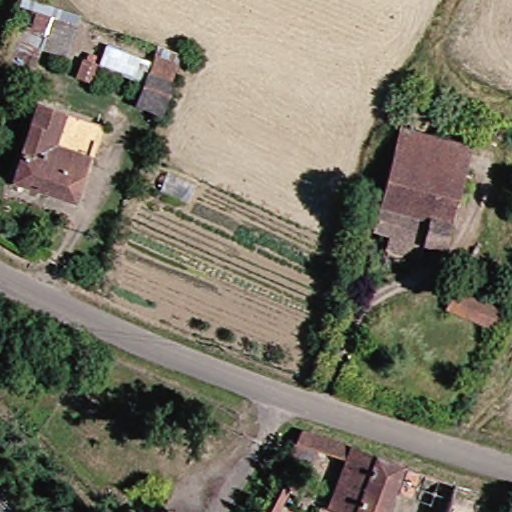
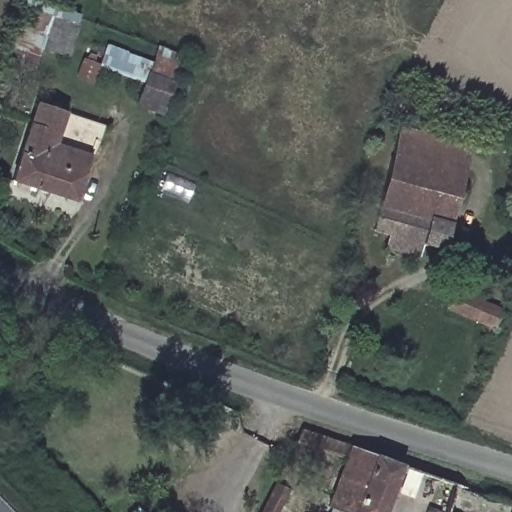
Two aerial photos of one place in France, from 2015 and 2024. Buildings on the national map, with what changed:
unchanged [(51,47),(44,66),(17,56),(32,22),(17,16),(22,0),(36,0),(88,18),(74,55),(51,47)]
unchanged [(150,86),(155,68),(182,78),(177,94),(150,86)]
unchanged [(80,200),(15,178),(42,100),(107,123),(80,200)]
unchanged [(472,167),(402,150),(407,127),(477,144),(472,167)]
unchanged [(463,202),(394,184),(402,150),(472,167),(463,202)]
unchanged [(394,184),(463,202),(458,225),(388,207),(394,184)]
unchanged [(453,246),(383,229),(388,207),(458,225),(453,246)]
unchanged [(462,294),(487,305),(485,313),(507,323),(498,338),(490,335),(451,317),(462,294)]
unchanged [(397,484),(387,512),(357,512),(331,503),(345,458),(291,441),(299,425),(405,458),(397,484)]
unchanged [(282,512),(264,512),(279,480),(293,489),(282,512)]

